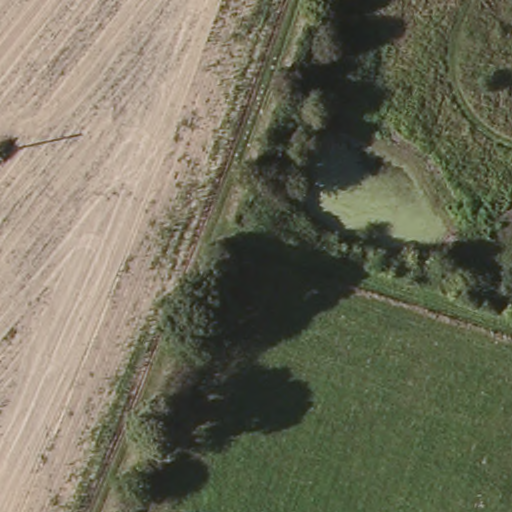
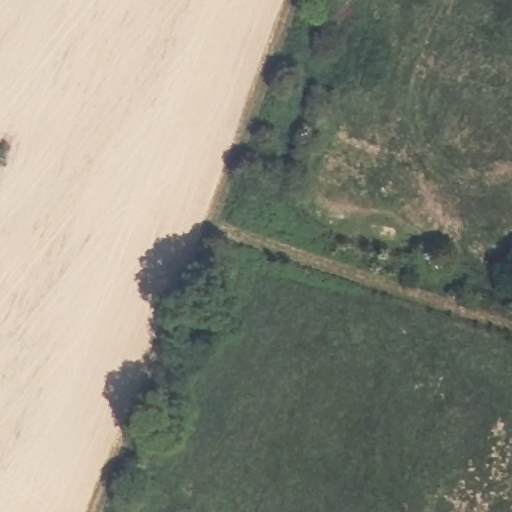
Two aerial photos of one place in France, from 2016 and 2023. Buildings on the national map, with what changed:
unchanged [(184,512),(178,512),(178,511),(184,512)]

